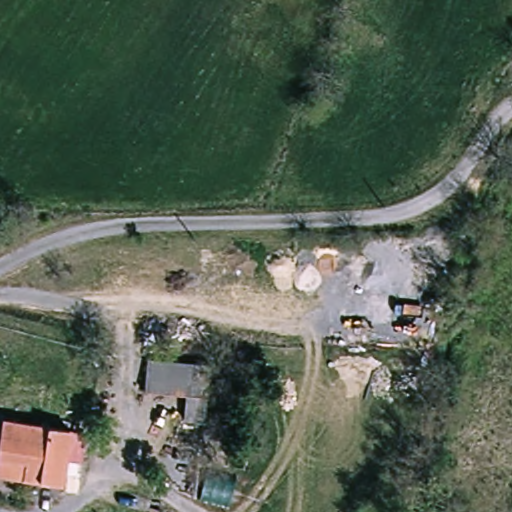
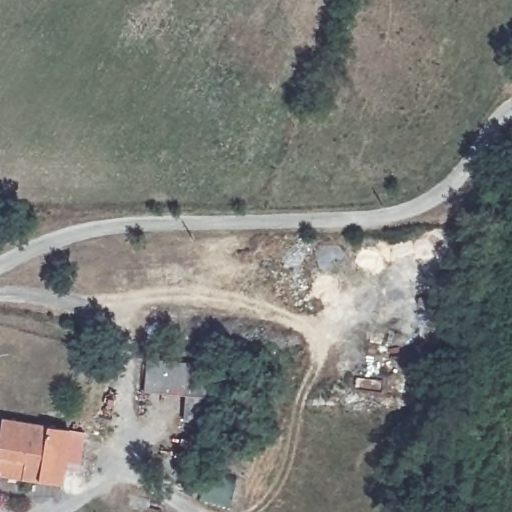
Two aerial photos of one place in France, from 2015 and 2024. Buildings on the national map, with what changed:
unchanged [(201,392),(155,389),(158,358),(204,359),(201,392)]
unchanged [(0,473),(0,472),(0,450),(5,418),(72,428),(63,484),(26,479),(0,475),(0,473)]

